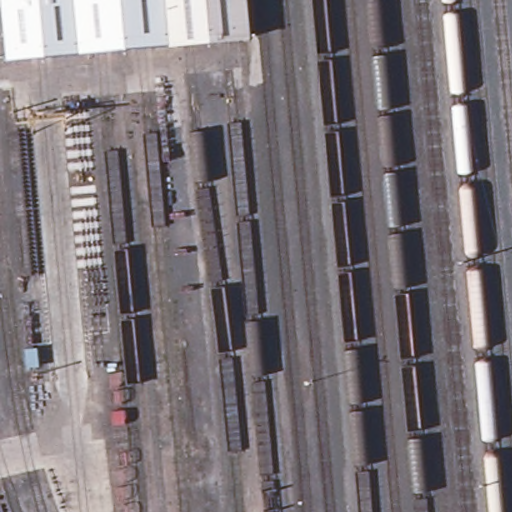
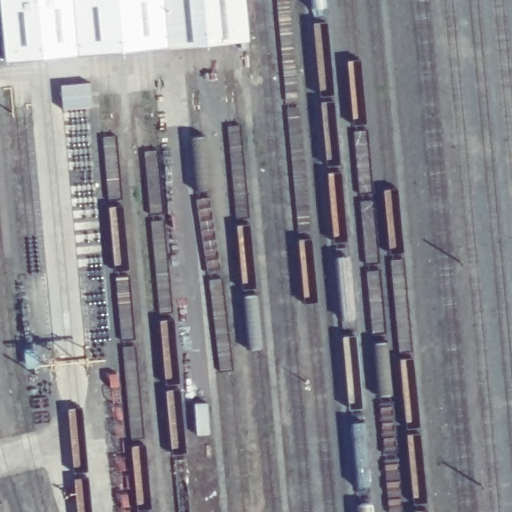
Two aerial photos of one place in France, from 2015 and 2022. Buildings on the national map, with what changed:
unchanged [(0,62),(0,56),(0,0),(160,0),(164,48),(0,62)]
unchanged [(164,48),(160,0),(240,0),(243,40),(164,48)]

